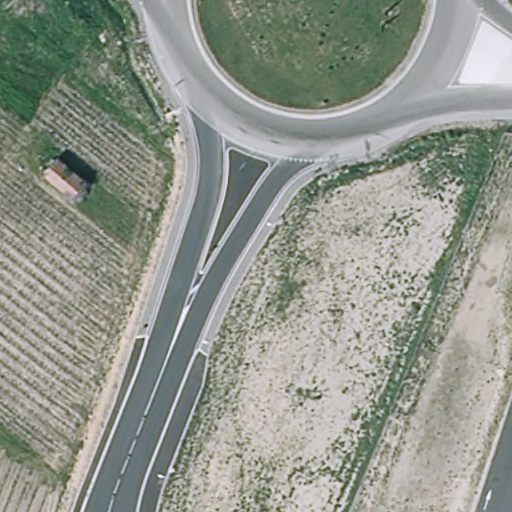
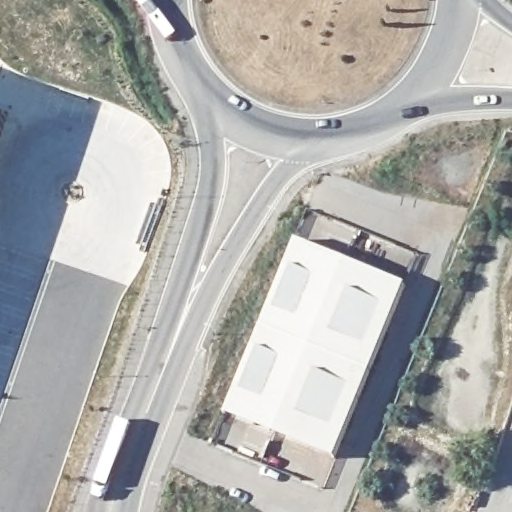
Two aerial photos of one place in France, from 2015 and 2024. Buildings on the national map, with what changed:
demolished [(47,177),(63,159),(81,174),(65,192),(47,177)]
new [(291,242),(293,238),(404,285),(402,289),(334,452),(331,457),(221,411),(223,406),(291,242)]

